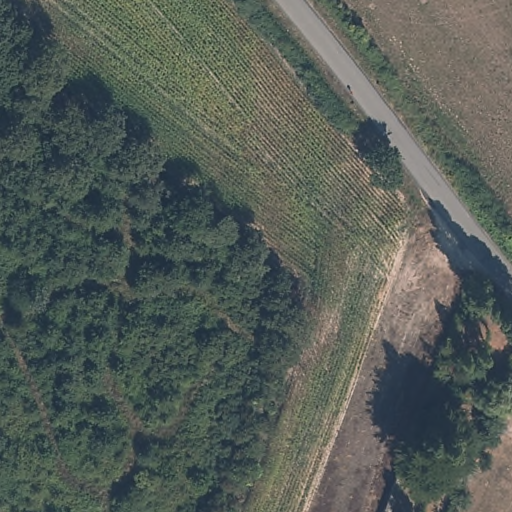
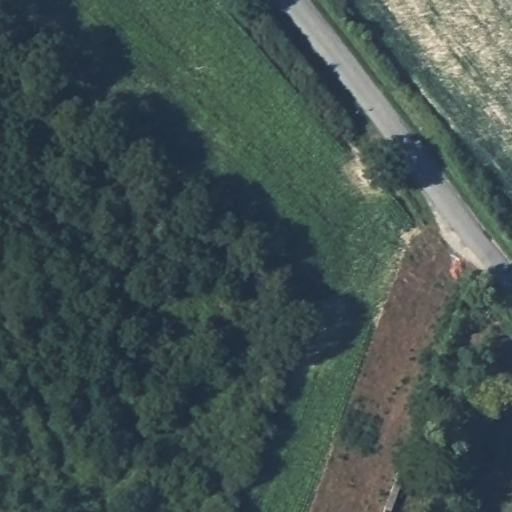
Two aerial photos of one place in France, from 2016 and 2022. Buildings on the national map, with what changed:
unchanged [(399,475),(406,477),(394,512),(385,512),(391,495),(399,475)]

